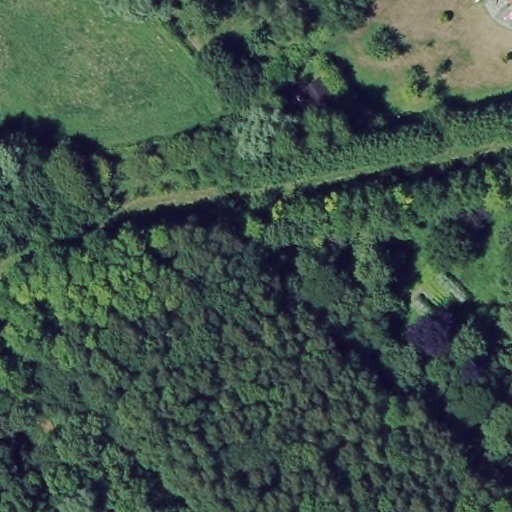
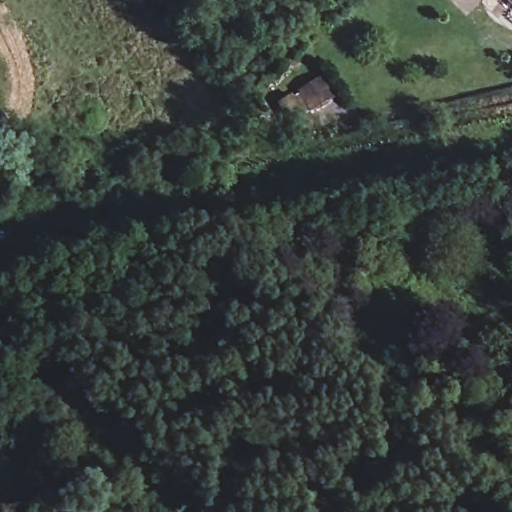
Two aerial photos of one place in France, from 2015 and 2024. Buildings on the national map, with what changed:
unchanged [(512,0),(512,1),(511,0),(512,0)]
unchanged [(291,87),(299,101),(274,114),(266,101),(291,87)]

